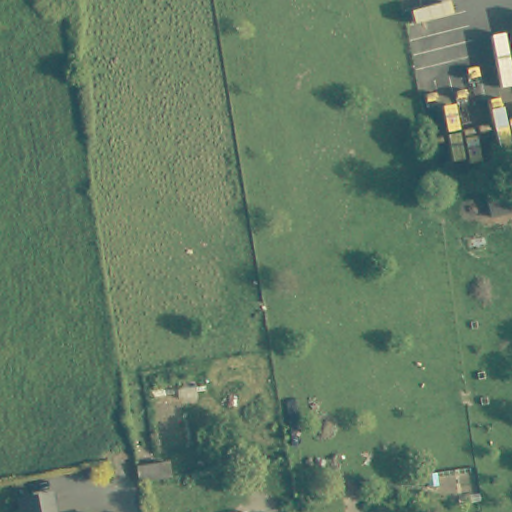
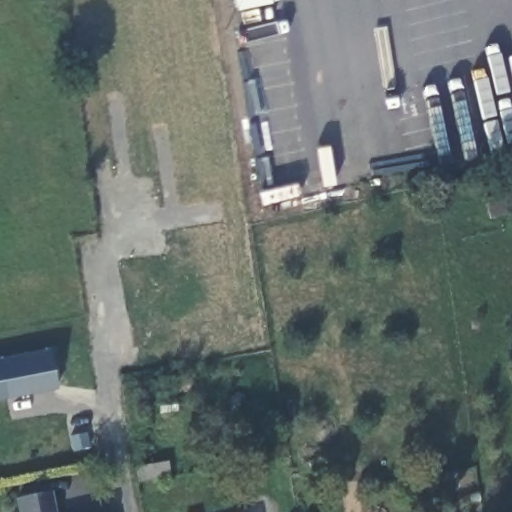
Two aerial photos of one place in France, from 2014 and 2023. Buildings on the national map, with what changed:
new [(0,363),(0,357),(50,348),(56,390),(6,399),(0,363)]
unchanged [(163,472),(131,478),(129,464),(160,458),(163,472)]
unchanged [(51,512),(16,512),(12,494),(45,488),(51,512)]

